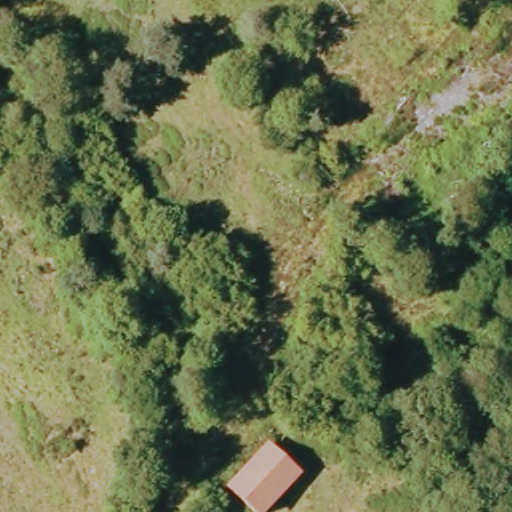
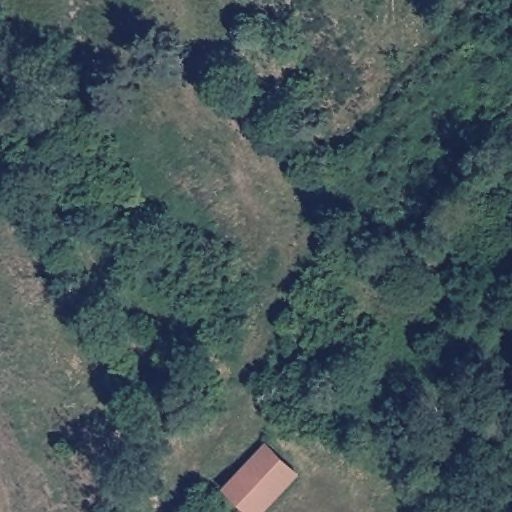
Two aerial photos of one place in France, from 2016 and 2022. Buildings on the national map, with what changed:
unchanged [(304,475),(268,512),(258,512),(228,480),(269,437),(304,475)]

